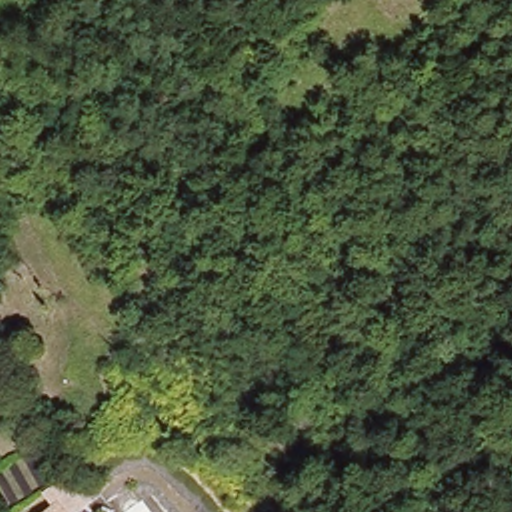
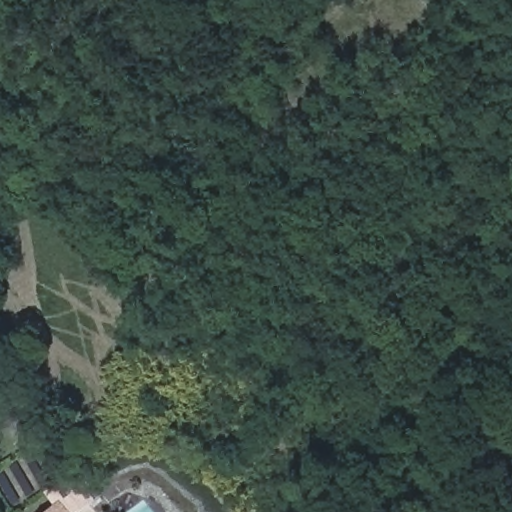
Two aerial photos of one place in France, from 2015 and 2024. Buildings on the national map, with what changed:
unchanged [(76,468),(101,498),(86,512),(50,512),(58,505),(48,492),(76,468)]

